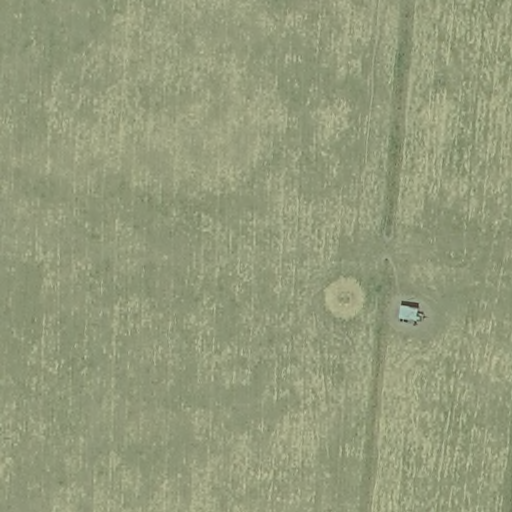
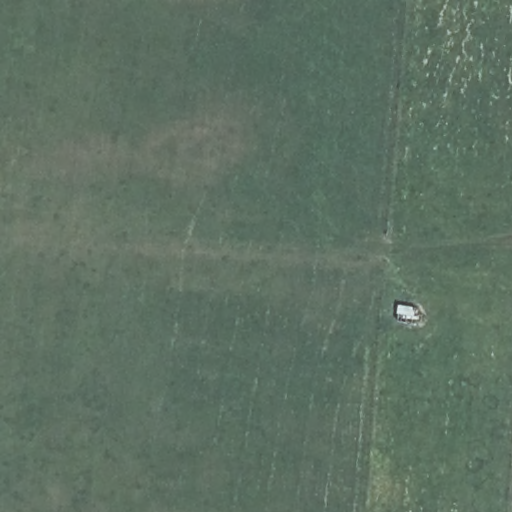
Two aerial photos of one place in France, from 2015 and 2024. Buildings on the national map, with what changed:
unchanged [(422,327),(401,327),(401,308),(422,308),(422,327)]

